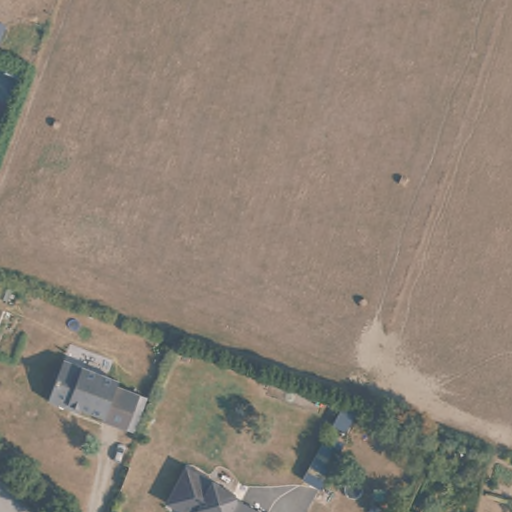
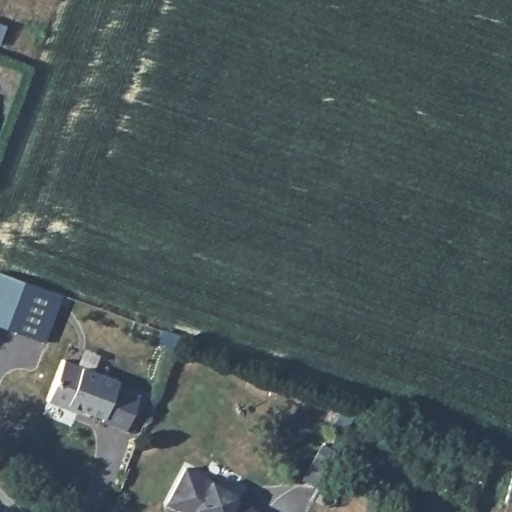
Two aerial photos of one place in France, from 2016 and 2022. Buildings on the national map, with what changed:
new [(44,343),(0,326),(0,273),(61,295),(44,343)]
unchanged [(131,435),(101,422),(103,418),(66,403),(64,407),(43,399),(60,357),(118,381),(115,388),(145,400),(131,435)]
unchanged [(166,506),(185,471),(199,478),(232,497),(235,504),(249,512),(178,512),(166,506)]

